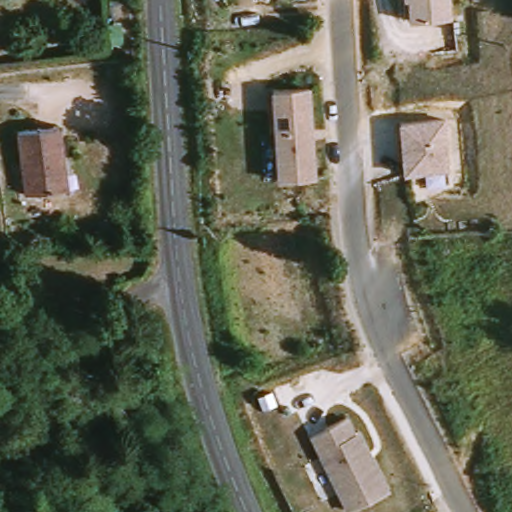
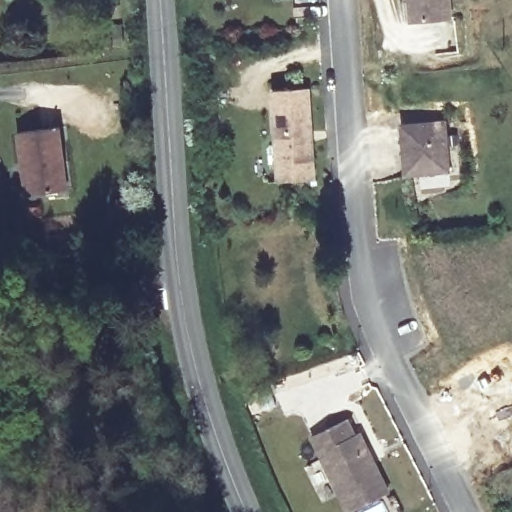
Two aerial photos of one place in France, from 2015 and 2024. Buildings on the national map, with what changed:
unchanged [(410,21),(409,0),(452,0),(454,18),(410,21)]
unchanged [(271,89),(307,87),(313,178),(278,180),(271,89)]
unchanged [(401,124),(447,120),(452,172),(405,177),(401,124)]
unchanged [(26,204),(20,140),(59,136),(66,200),(26,204)]
unchanged [(347,512),(346,512),(308,437),(342,418),(351,435),(356,432),(369,460),(385,493),(347,512)]

